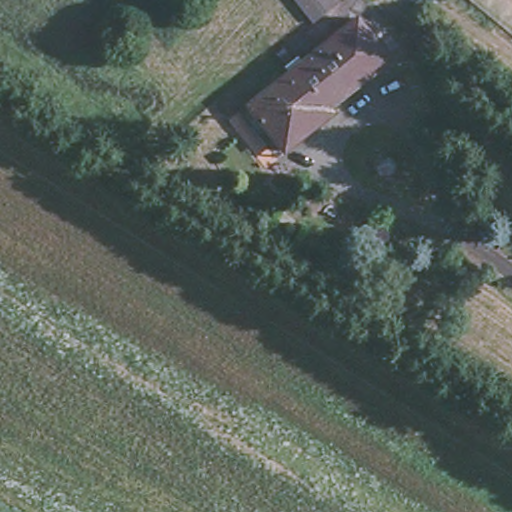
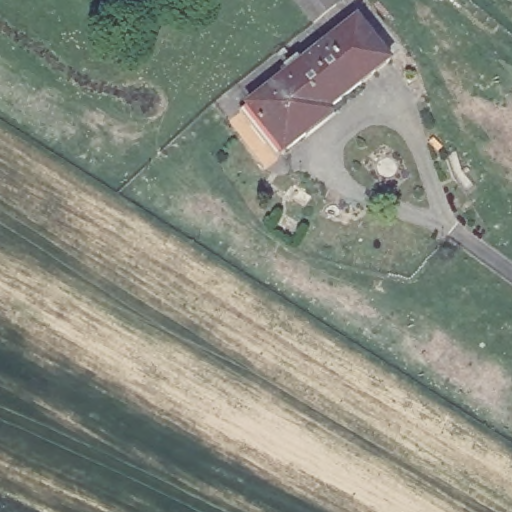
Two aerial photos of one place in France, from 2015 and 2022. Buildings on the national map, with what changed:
unchanged [(342,8),(317,29),(292,0),(293,0),(335,0),(342,8)]
unchanged [(248,112),(257,104),(362,12),(395,51),(310,127),(315,131),(293,149),(286,156),(248,112)]

